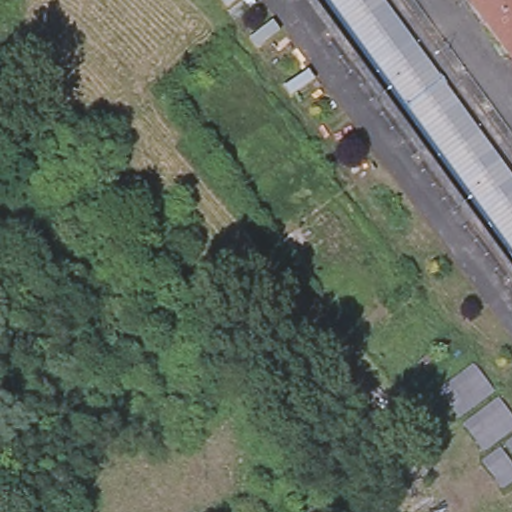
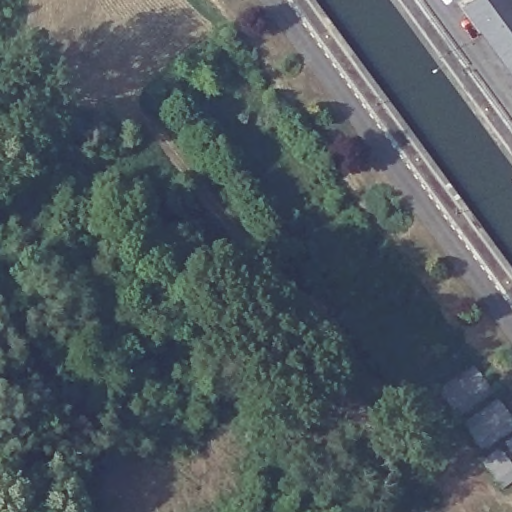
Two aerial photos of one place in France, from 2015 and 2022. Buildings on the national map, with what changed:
unchanged [(465,4),(470,0),(512,0),(512,58),(509,60),(506,62),(465,4)]
unchanged [(509,60),(512,58),(512,64),(509,60)]
unchanged [(473,366),(512,417),(512,483),(502,490),(482,462),(487,456),(438,391),(473,366)]
unchanged [(382,435),(368,446),(353,424),(367,412),(382,435)]

